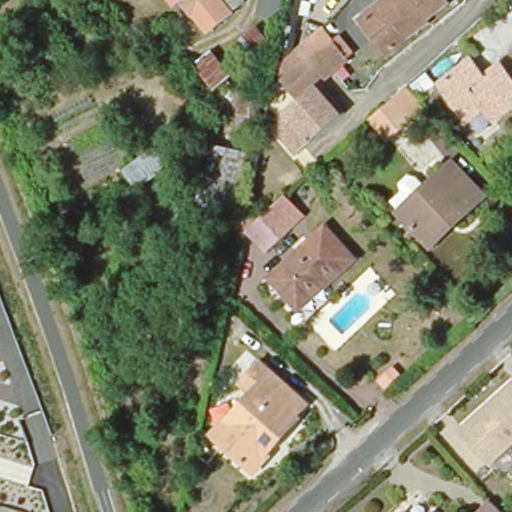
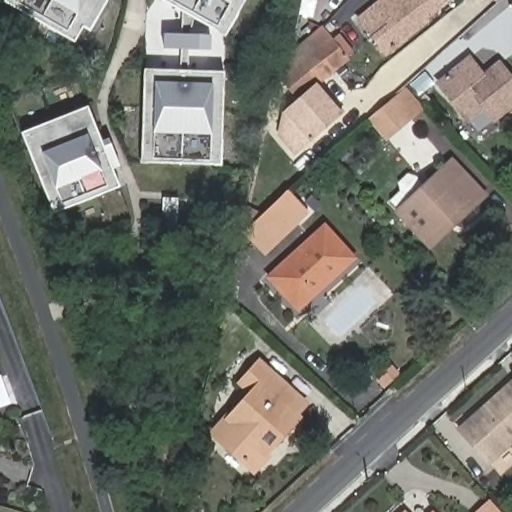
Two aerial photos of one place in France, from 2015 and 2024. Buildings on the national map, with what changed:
new [(91,31),(85,27),(76,42),(6,2),(7,0),(109,0),(91,31)]
new [(164,0),(246,0),(226,36),(164,0)]
demolished [(172,5),(168,0),(178,0),(172,5)]
demolished [(208,30),(195,15),(193,16),(181,0),(241,0),(208,30)]
unchanged [(372,38),(389,25),(374,6),(382,0),(445,0),(446,2),(425,19),(426,21),(404,37),(405,39),(402,42),(386,54),(372,38)]
demolished [(251,22),(270,44),(252,60),(233,39),(251,22)]
unchanged [(283,67),(296,57),(308,47),(301,39),(322,22),(328,31),(319,39),(336,64),(323,75),(310,74),(296,85),(283,67)]
new [(165,51),(166,34),(212,35),(212,51),(165,51)]
demolished [(190,60),(206,47),(224,70),(209,82),(190,60)]
unchanged [(465,53),(479,71),(494,58),(512,81),(512,98),(488,116),(479,104),(463,117),(433,78),(465,53)]
new [(223,165),(142,162),(147,70),(227,72),(223,165)]
unchanged [(313,80),(319,87),(319,92),(326,99),(328,97),(340,110),(296,151),(279,132),(285,106),(313,80)]
unchanged [(400,91),(417,112),(391,136),(373,116),(400,91)]
demolished [(254,95),(249,127),(232,125),(236,92),(254,95)]
new [(103,141),(111,138),(123,167),(115,171),(121,187),(56,214),(24,133),(89,106),(103,141)]
demolished [(235,206),(197,198),(209,141),(247,149),(235,206)]
demolished [(146,187),(130,169),(152,151),(167,168),(146,187)]
unchanged [(392,213),(395,210),(387,202),(397,191),(396,190),(394,183),(404,174),(410,176),(420,186),(447,161),(459,173),(479,196),(473,202),(457,217),(425,249),(418,242),(392,213)]
unchanged [(278,194),(297,215),(258,250),(239,230),(278,194)]
unchanged [(325,226),(355,258),(298,309),(268,277),(325,226)]
unchanged [(218,419),(220,421),(245,392),(235,382),(253,362),(301,403),(290,415),(293,417),(258,457),(260,459),(248,472),(210,439),(205,434),(218,419)]
unchanged [(512,383),(512,439),(486,463),(457,431),(511,382),(512,383)]
unchanged [(500,512),(479,512),(491,501),(500,512)]

